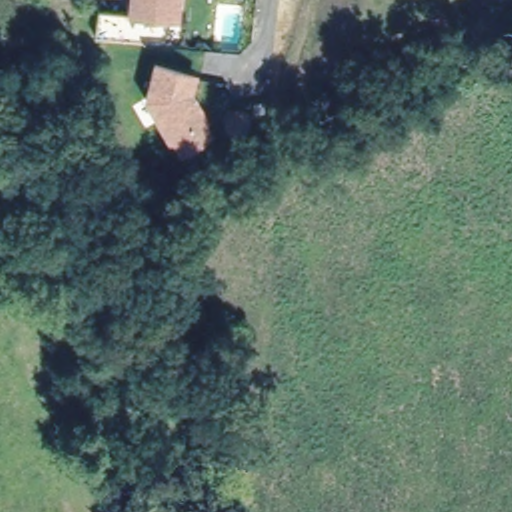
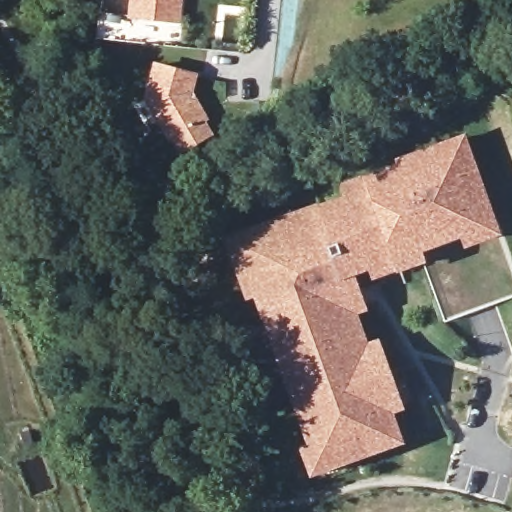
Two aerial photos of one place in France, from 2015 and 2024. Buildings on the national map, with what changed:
unchanged [(176,0),(174,20),(134,16),(103,13),(105,0),(176,0)]
unchanged [(182,150),(174,137),(171,139),(149,99),(156,66),(195,76),(191,93),(206,119),(203,120),(210,134),(182,150)]
new [(304,448),(314,444),(307,422),(313,419),(301,387),(290,391),(279,359),(268,328),(279,324),(267,291),(249,297),(242,278),(237,264),(228,239),(239,235),(286,218),(318,207),(345,197),(342,187),(359,180),(373,175),(401,165),(399,161),(452,142),(462,138),(473,169),(512,277),(512,297),(444,322),(421,259),(404,265),(389,270),(372,277),(369,267),(349,273),(356,290),(362,308),(352,312),(365,348),(376,344),(384,368),(390,382),(399,407),(388,411),(398,440),(323,467),(312,471),(304,448)]

